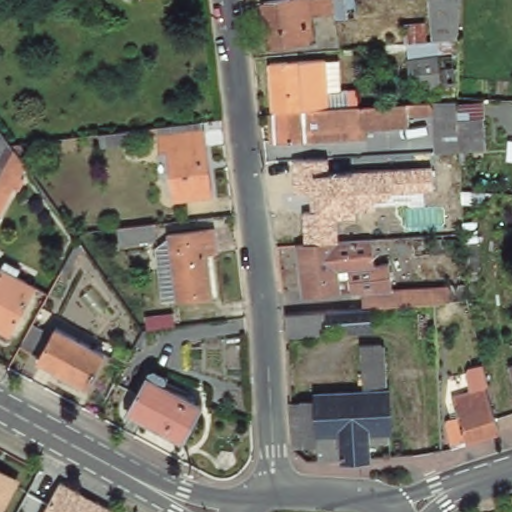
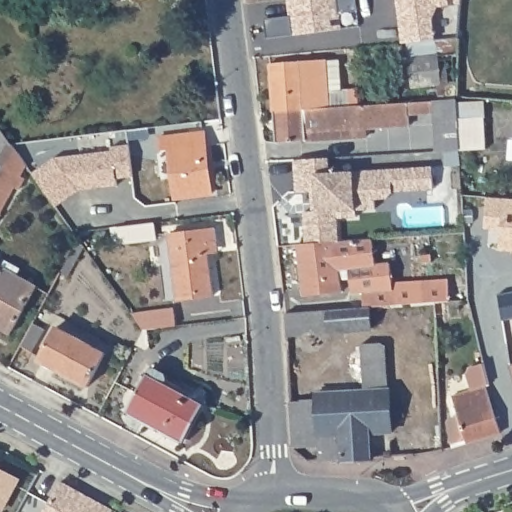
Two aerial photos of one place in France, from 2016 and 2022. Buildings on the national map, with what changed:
demolished [(259,0),(267,0),(260,1),(259,0)]
unchanged [(351,0),(353,14),(332,17),(331,12),(310,14),(314,42),(265,47),(260,1),(267,0),(351,0)]
unchanged [(453,40),(453,42),(437,43),(432,7),(431,0),(456,0),(455,15),(453,40)]
unchanged [(406,62),(401,21),(426,21),(428,41),(437,43),(453,42),(452,104),(437,104),(436,89),(408,90),(406,62)]
unchanged [(267,69),(335,64),(338,97),(352,96),(353,111),(270,117),(267,69)]
unchanged [(302,145),(302,144),(272,147),(270,117),(353,111),(394,107),(402,107),(431,105),(437,104),(452,104),(452,107),(477,105),(480,120),(483,152),(457,154),(457,153),(435,155),(428,156),(426,129),(404,130),(395,131),(356,134),(357,141),(302,145)]
unchanged [(175,202),(170,152),(164,153),(161,137),(161,135),(161,130),(202,125),(204,134),(210,198),(175,202)]
demolished [(152,136),(149,140),(130,141),(130,145),(101,149),(100,137),(161,130),(161,135),(152,136)]
new [(32,174),(54,157),(110,150),(110,146),(129,143),(132,177),(115,179),(116,187),(79,191),(56,207),(32,174)]
unchanged [(328,158),(328,173),(355,172),(431,166),(433,190),(398,192),(387,202),(372,202),(373,210),(356,208),(356,216),(336,217),(339,245),(306,247),(304,214),(313,214),(311,191),(296,192),(293,157),(328,158)]
unchanged [(0,174),(0,161),(5,164),(0,174)]
unchanged [(7,162),(22,171),(17,180),(23,183),(16,195),(11,192),(0,213),(0,174),(5,164),(7,162)]
new [(498,250),(500,231),(484,230),(486,197),(512,200),(512,251),(498,250)]
unchanged [(130,247),(128,231),(165,226),(167,242),(130,247)]
unchanged [(189,304),(189,302),(175,304),(169,249),(179,242),(179,238),(225,232),(226,244),(216,245),(224,300),(189,304)]
unchanged [(344,245),(372,242),(375,268),(375,270),(351,272),(352,281),(342,282),(343,294),(305,299),(298,248),(344,245)]
unchanged [(7,260),(22,268),(19,275),(37,286),(12,332),(0,325),(0,265),(4,267),(7,260)]
unchanged [(375,268),(390,267),(391,293),(448,288),(449,302),(435,302),(433,302),(426,303),(390,306),(370,307),(368,307),(365,308),(364,293),(353,295),(352,281),(351,272),(375,270),(375,268)]
unchanged [(358,308),(365,308),(368,307),(370,307),(371,328),(288,335),(287,314),(358,308)]
unchanged [(106,357),(86,391),(38,365),(56,331),(106,357)]
unchanged [(314,395),(362,392),(359,347),(378,345),(383,350),(386,391),(388,390),(390,433),(387,433),(388,442),(366,442),(367,457),(367,460),(349,461),(340,461),(340,458),(316,460),(316,447),(314,401),(314,395)]
unchanged [(512,366),(512,369),(511,366),(512,366)]
unchanged [(148,375),(204,405),(185,440),(130,410),(148,375)]
unchanged [(450,395),(482,385),(497,431),(450,447),(445,424),(447,418),(456,416),(450,395)]
unchanged [(314,401),(316,447),(290,448),(287,402),(314,401)]
unchanged [(0,510),(0,509),(0,472),(17,481),(0,510)]
unchanged [(60,481),(115,512),(114,512),(44,512),(60,481)]

